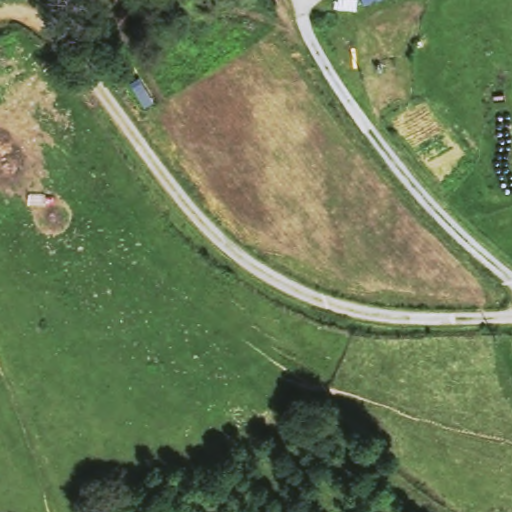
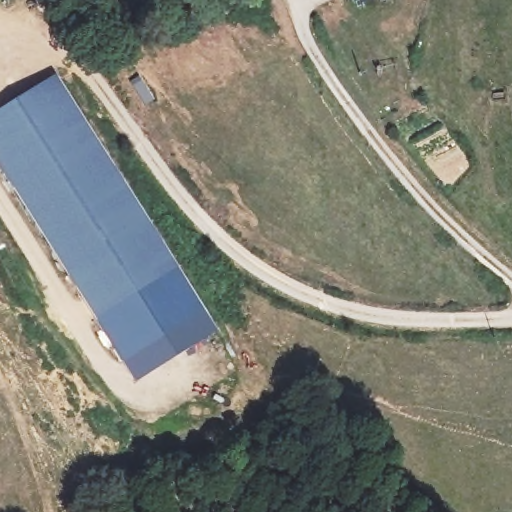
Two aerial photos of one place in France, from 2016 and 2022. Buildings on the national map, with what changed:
new [(121,362),(0,170),(0,111),(56,76),(202,312),(121,362)]

